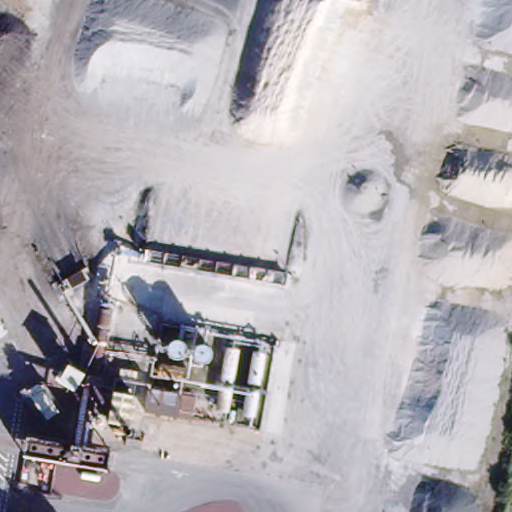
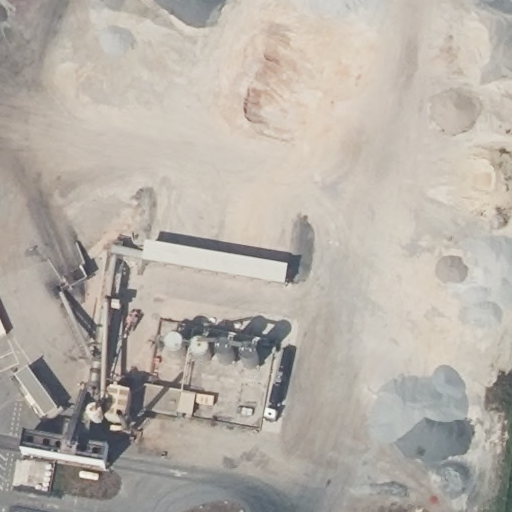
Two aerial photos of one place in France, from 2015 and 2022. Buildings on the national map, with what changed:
unchanged [(84,374),(74,392),(57,382),(68,365),(84,374)]
unchanged [(131,382),(123,427),(107,424),(115,379),(131,382)]
unchanged [(38,383),(58,412),(47,420),(26,391),(38,383)]
unchanged [(181,394),(177,418),(143,412),(147,388),(181,394)]

